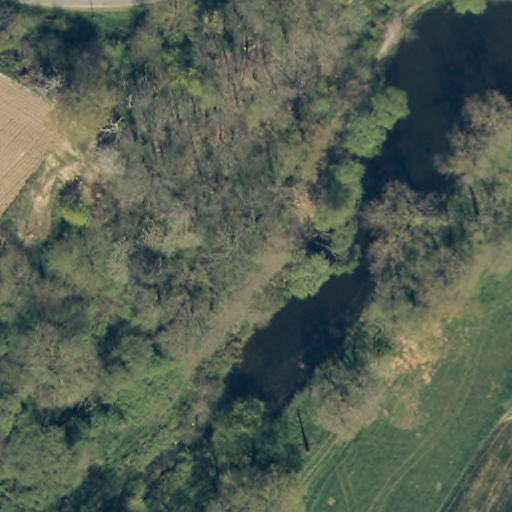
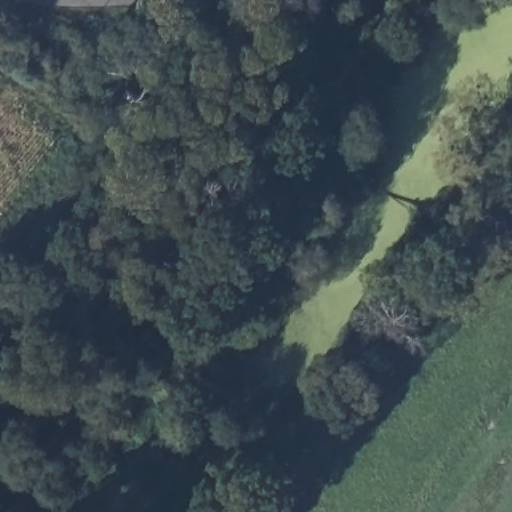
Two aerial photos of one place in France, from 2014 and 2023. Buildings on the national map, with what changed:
[]

